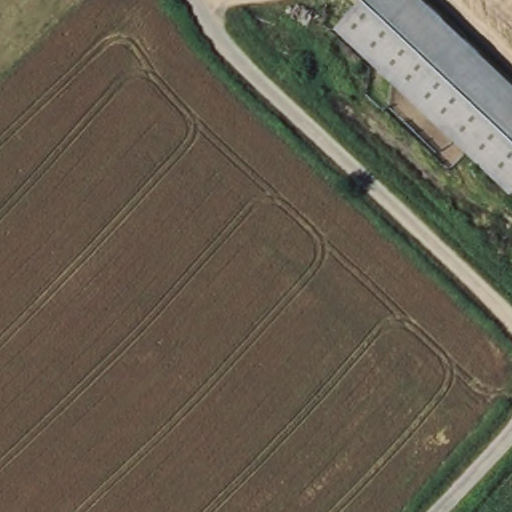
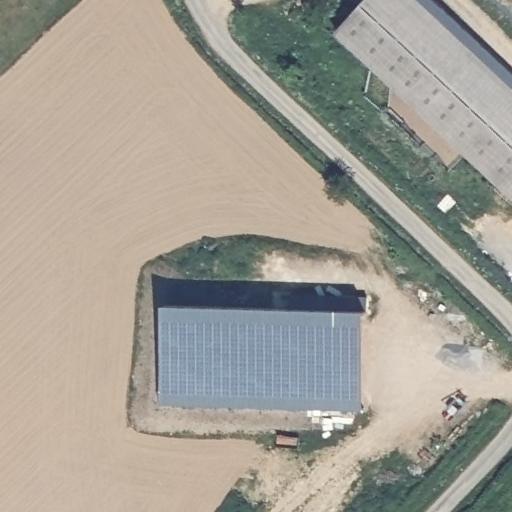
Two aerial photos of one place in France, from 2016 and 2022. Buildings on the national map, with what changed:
unchanged [(512,184),(331,35),(360,0),(389,0),(512,102),(512,184)]
unchanged [(410,0),(512,84),(512,102),(389,0),(410,0)]
new [(167,303),(366,311),(362,411),(163,402),(167,303)]

